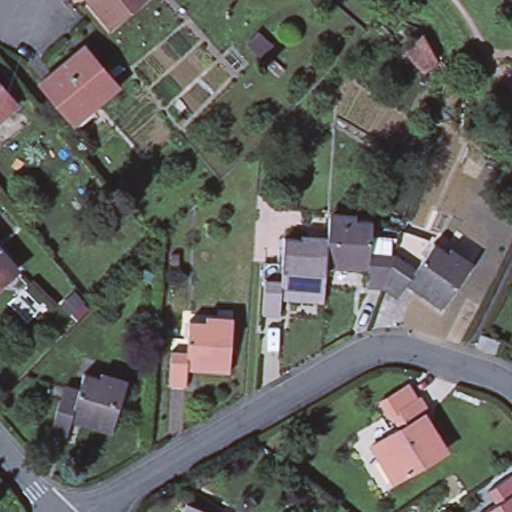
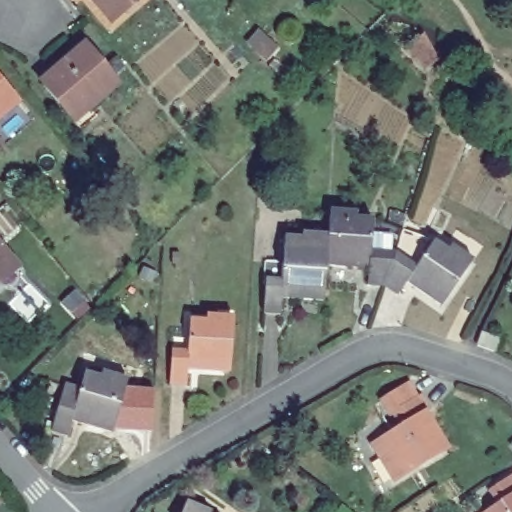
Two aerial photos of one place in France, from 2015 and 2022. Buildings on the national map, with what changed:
unchanged [(110,20),(93,0),(133,0),(110,20)]
unchanged [(117,82),(73,119),(40,79),(83,42),(117,82)]
unchanged [(19,103),(0,119),(0,82),(19,103)]
unchanged [(264,273),(265,257),(283,258),(284,243),(285,232),(329,235),(330,212),(372,213),(370,245),(395,246),(414,258),(431,232),(468,256),(442,296),(405,273),(397,286),(384,278),(367,277),(368,262),(327,262),(325,295),(282,292),(281,307),(264,307),(267,273),(264,273)]
unchanged [(15,269),(0,281),(0,252),(15,269)]
unchanged [(170,379),(173,345),(187,346),(190,316),(232,318),(228,366),(187,365),(187,379),(170,379)]
unchanged [(505,341),(500,353),(483,346),(488,334),(505,341)]
unchanged [(51,427),(60,395),(64,381),(79,385),(84,369),(126,380),(112,426),(72,415),(68,431),(51,427)]
unchanged [(399,477),(376,439),(402,422),(394,409),(391,410),(383,396),(410,379),(419,393),(423,390),(432,404),(423,409),(446,447),(399,477)]
new [(155,387),(153,430),(112,426),(125,385),(155,387)]
unchanged [(491,485),(512,471),(512,512),(479,512),(499,499),(491,485)]
unchanged [(204,512),(177,512),(181,502),(204,512)]

